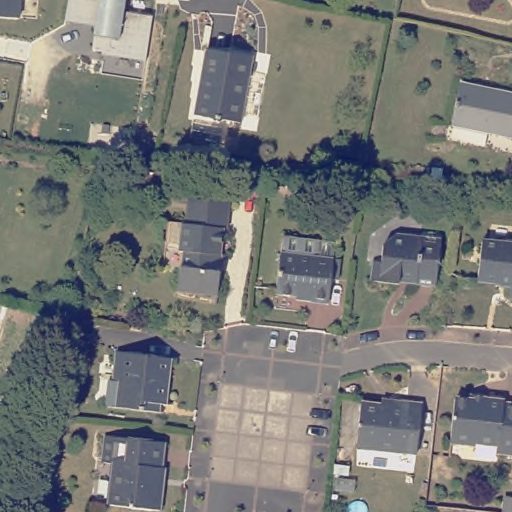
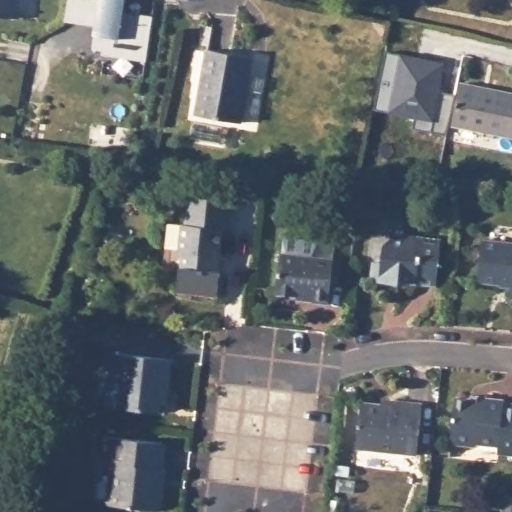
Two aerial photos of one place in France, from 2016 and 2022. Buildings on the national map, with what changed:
unchanged [(20,17),(0,17),(0,0),(20,0),(20,17)]
unchanged [(67,0),(125,0),(124,11),(150,16),(145,60),(100,54),(101,50),(92,49),(94,35),(95,26),(64,22),(67,0)]
unchanged [(197,114),(210,50),(254,59),(241,123),(197,114)]
new [(454,122),(450,137),(411,129),(413,118),(373,108),(384,51),(445,65),(438,94),(459,98),(454,122)]
unchanged [(454,122),(463,80),(512,91),(512,135),(454,122)]
unchanged [(223,271),(224,271),(228,271),(225,296),(185,293),(184,293),(186,271),(187,266),(170,265),(175,223),(192,225),(195,195),(236,200),(232,229),(227,229),(223,271)]
unchanged [(437,283),(416,280),(414,276),(398,274),(397,280),(374,278),(376,258),(381,258),(383,243),(395,234),(420,237),(421,233),(442,235),(437,283)]
unchanged [(474,275),(477,236),(512,241),(512,280),(474,275)]
unchanged [(281,259),(282,243),(320,248),(335,249),(333,265),(327,310),(312,308),(312,302),(276,298),(281,259)]
unchanged [(121,387),(114,386),(118,356),(172,363),(166,411),(156,410),(155,415),(118,411),(121,387)]
unchanged [(504,400),(512,401),(512,450),(498,448),(500,441),(475,439),(475,441),(451,439),(455,396),(472,398),(473,392),(485,394),(485,396),(505,398),(504,400)]
unchanged [(357,447),(362,401),(391,404),(392,399),(425,403),(418,454),(357,447)]
unchanged [(19,444),(17,454),(0,449),(0,430),(20,435),(19,444)]
unchanged [(111,504),(115,463),(102,462),(105,437),(162,444),(159,466),(162,466),(160,483),(163,484),(160,510),(111,504)]

